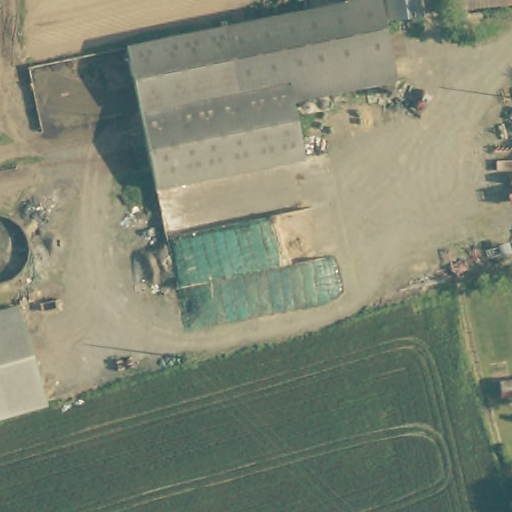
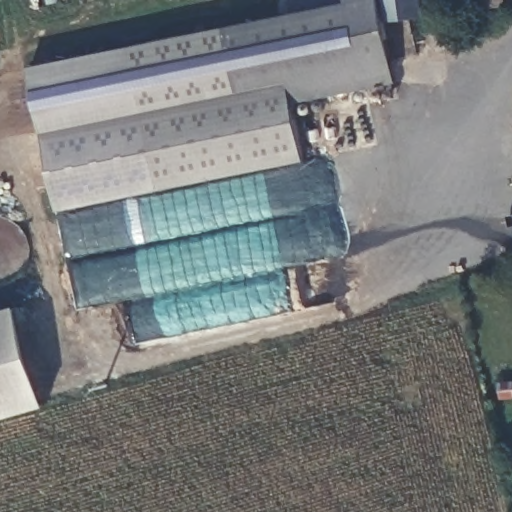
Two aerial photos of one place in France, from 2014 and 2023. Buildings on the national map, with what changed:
unchanged [(346,0),(379,0),(387,39),(356,45),(347,4),(346,0)]
unchanged [(384,19),(382,0),(421,0),(423,15),(384,19)]
unchanged [(444,0),(512,0),(512,6),(446,11),(444,0)]
unchanged [(356,45),(387,39),(394,82),(289,102),(302,162),(155,193),(124,45),(226,27),(347,4),(356,45)]
new [(59,210),(27,65),(124,45),(155,193),(59,210)]
unchanged [(0,420),(0,316),(11,313),(40,408),(0,420)]
unchanged [(495,383),(512,382),(512,397),(496,397),(495,383)]

